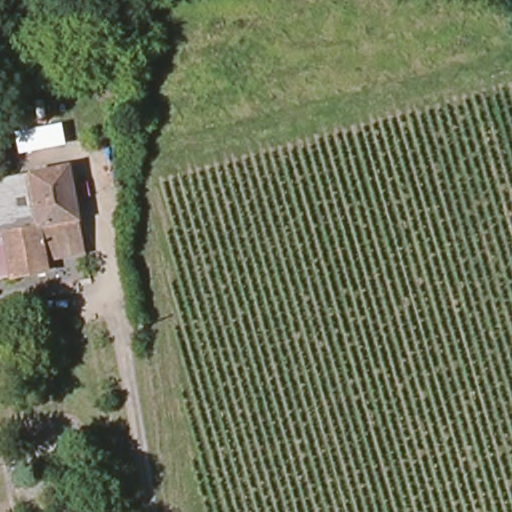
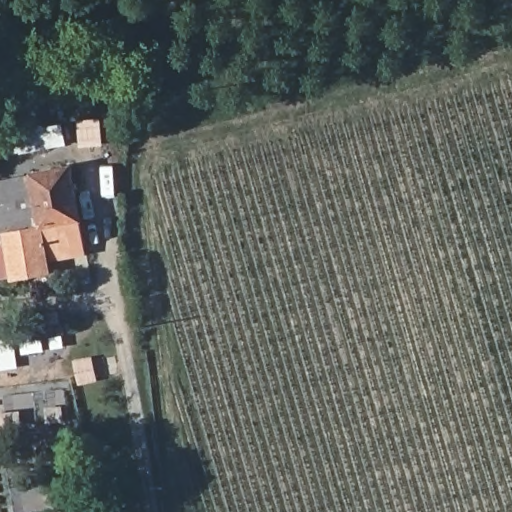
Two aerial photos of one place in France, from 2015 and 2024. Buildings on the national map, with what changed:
unchanged [(27,170),(65,161),(84,247),(43,257),(45,265),(9,275),(7,269),(0,271),(0,246),(2,245),(0,233),(0,230),(39,221),(27,170)]
unchanged [(0,230),(0,176),(27,170),(39,221),(0,230)]

